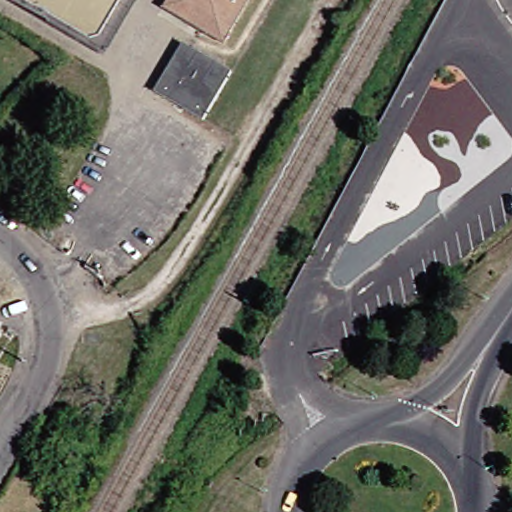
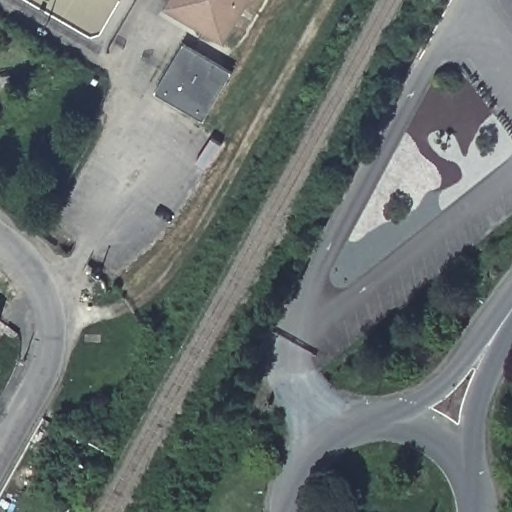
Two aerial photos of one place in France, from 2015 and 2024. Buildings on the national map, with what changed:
unchanged [(160,10),(166,0),(245,0),(226,32),(219,44),(208,37),(172,16),(160,10)]
unchanged [(225,74),(197,122),(148,94),(176,45),(225,74)]
unchanged [(29,342),(26,345),(16,337),(19,334),(29,342)]

